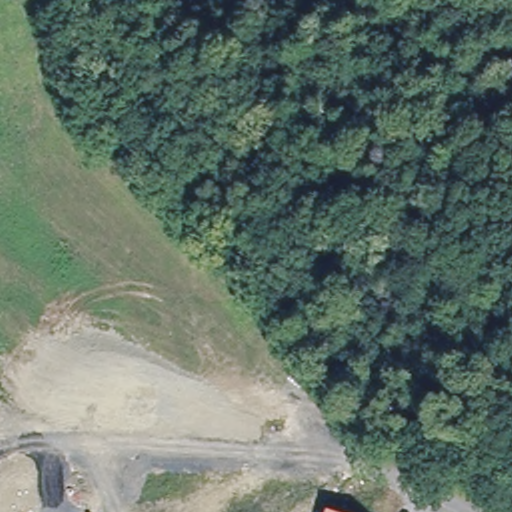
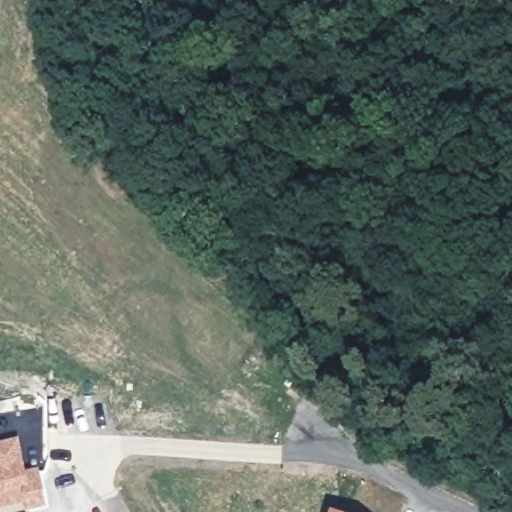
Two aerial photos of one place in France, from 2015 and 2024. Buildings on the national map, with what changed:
new [(40,467),(48,507),(27,512),(24,512),(22,501),(0,507),(0,441),(18,437),(25,469),(40,467)]

